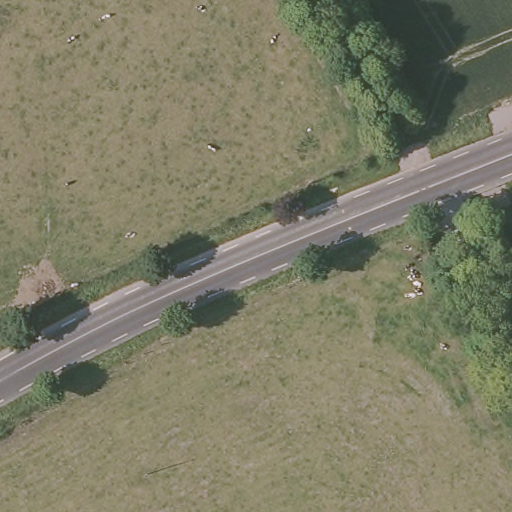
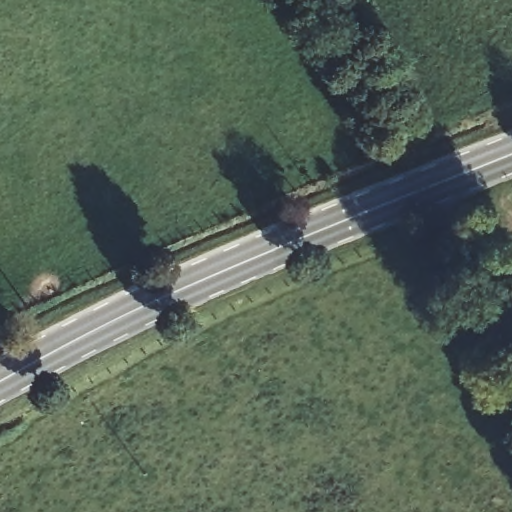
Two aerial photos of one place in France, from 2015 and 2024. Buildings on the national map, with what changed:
[]

